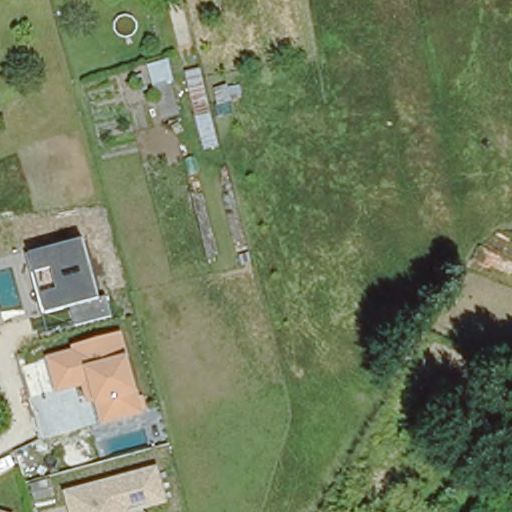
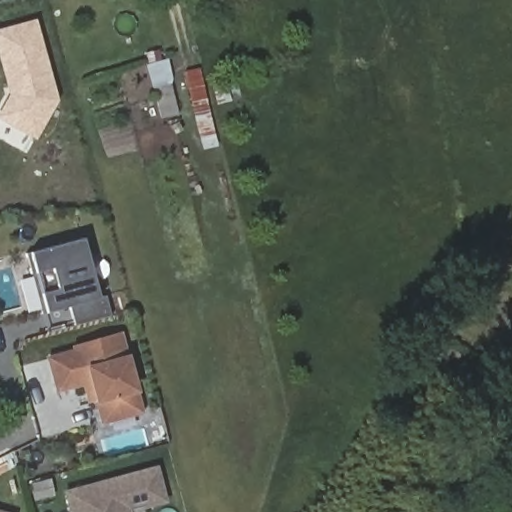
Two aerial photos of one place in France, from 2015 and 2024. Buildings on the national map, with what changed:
new [(0,66),(0,29),(36,18),(58,101),(36,141),(0,120),(0,115),(8,95),(0,66)]
unchanged [(115,320),(75,329),(70,308),(47,314),(31,254),(84,240),(99,301),(109,298),(115,320)]
unchanged [(101,425),(90,386),(55,395),(45,357),(73,350),(74,344),(124,331),(149,414),(101,425)]
unchanged [(171,502),(134,512),(70,512),(65,490),(160,465),(171,502)]

